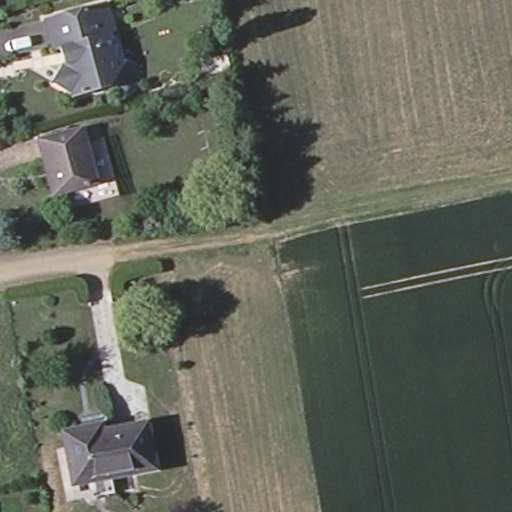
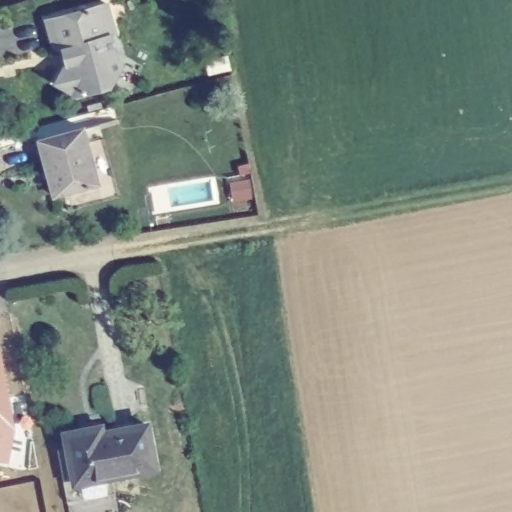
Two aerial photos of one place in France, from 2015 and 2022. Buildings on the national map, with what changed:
unchanged [(120,39),(115,41),(122,65),(128,69),(122,81),(115,77),(107,79),(110,94),(78,103),(77,98),(60,88),(70,72),(66,58),(58,54),(50,26),(112,9),(120,39)]
unchanged [(90,182),(48,194),(35,140),(77,129),(90,182)]
new [(17,425),(8,469),(0,466),(0,346),(2,346),(17,425)]
unchanged [(97,425),(135,419),(142,464),(97,473),(98,487),(75,491),(65,440),(76,437),(74,422),(95,418),(97,425)]

